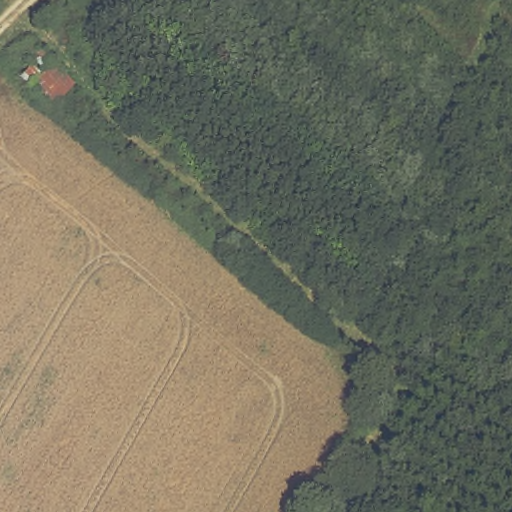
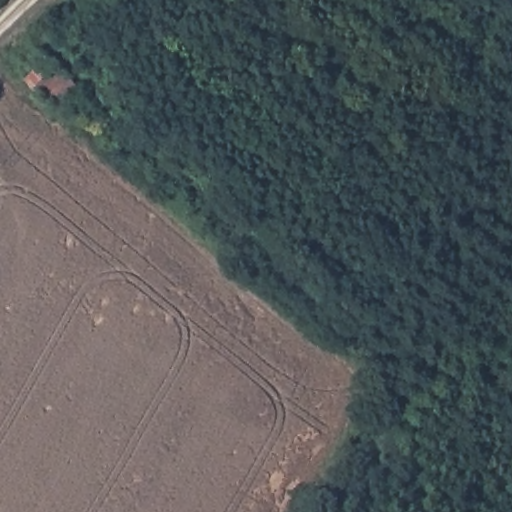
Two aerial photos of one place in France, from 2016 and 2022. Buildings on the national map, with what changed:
unchanged [(19,77),(43,54),(73,82),(50,105),(19,77)]

